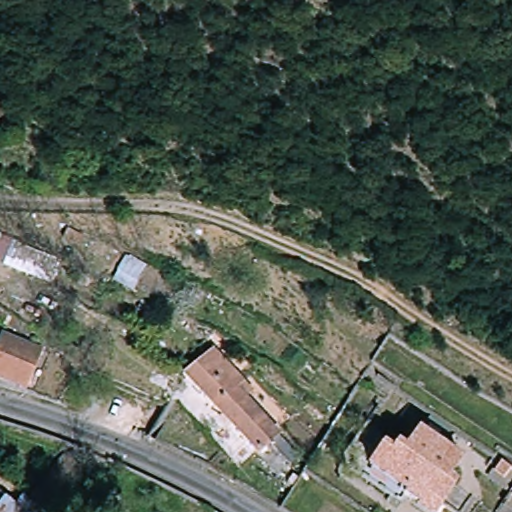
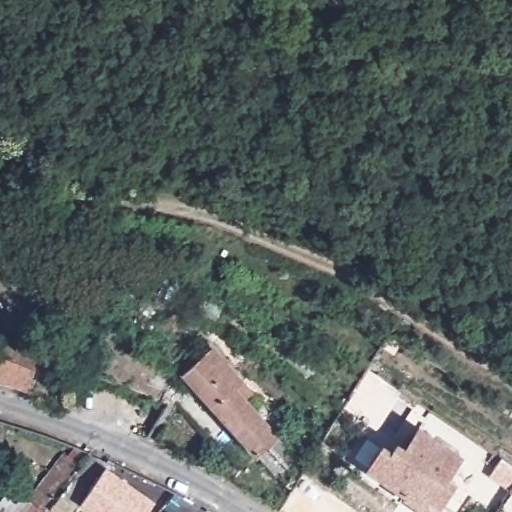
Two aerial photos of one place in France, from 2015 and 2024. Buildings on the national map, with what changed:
unchanged [(0,338),(3,332),(40,347),(24,386),(0,376),(0,338)]
unchanged [(295,458),(298,460),(289,468),(286,465),(276,473),(183,373),(212,346),(243,379),(233,388),(296,455),(295,458)]
unchanged [(432,512),(369,469),(384,442),(399,450),(417,425),(471,459),(432,512)]
new [(148,512),(93,512),(81,503),(106,467),(155,501),(148,512)]
unchanged [(50,469),(65,480),(45,509),(43,508),(29,497),(50,469)]
unchanged [(326,502),(340,512),(319,512),(326,502)]

